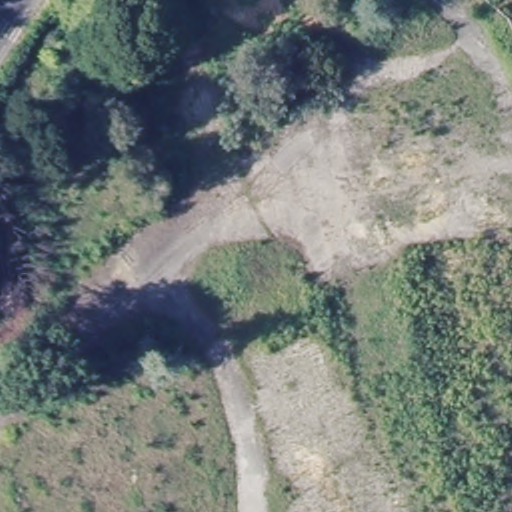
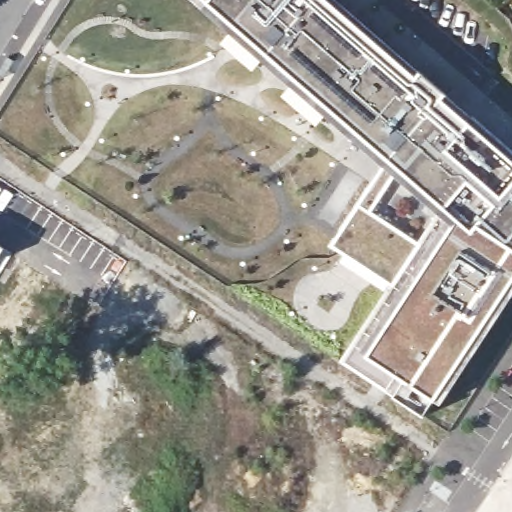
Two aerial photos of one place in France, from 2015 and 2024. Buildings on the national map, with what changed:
new [(440,404),(433,399),(424,414),(396,396),(343,360),(392,285),(333,245),(386,165),(202,10),(190,0),(335,0),(512,153),(512,294),(440,404)]
new [(1,254),(7,258),(0,270),(0,245),(5,247),(1,254)]

